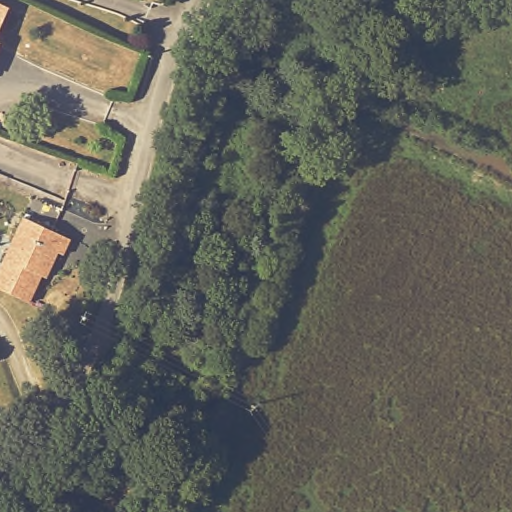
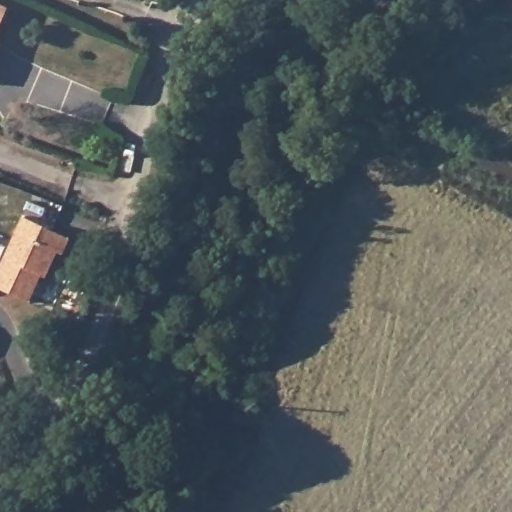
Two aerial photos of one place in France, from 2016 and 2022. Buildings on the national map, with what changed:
unchanged [(0,36),(0,0),(7,0),(15,4),(0,36)]
unchanged [(77,241),(70,254),(65,251),(54,268),(49,265),(29,299),(0,281),(0,259),(30,212),(77,241)]

